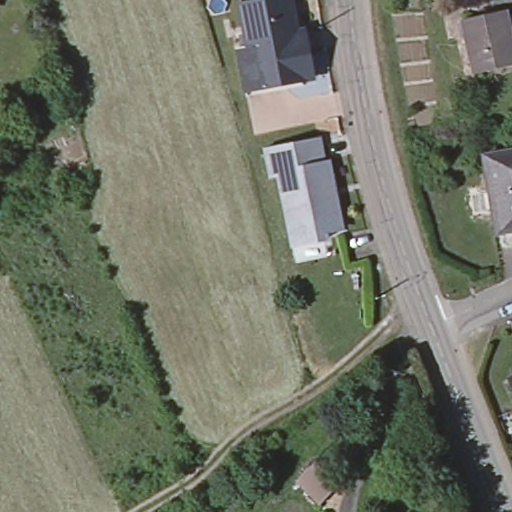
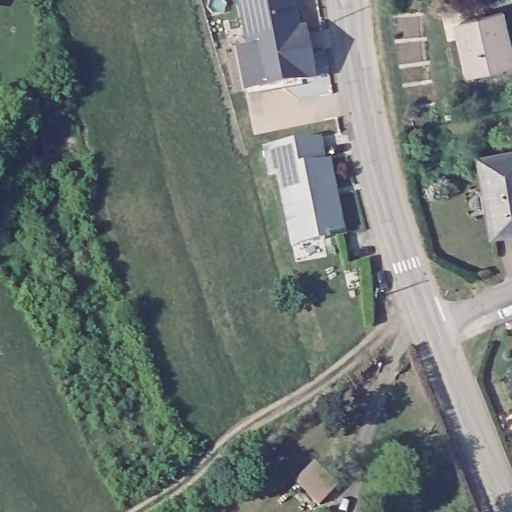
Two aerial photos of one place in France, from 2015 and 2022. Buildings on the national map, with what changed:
unchanged [(243,40),(253,38),(247,0),(297,0),(302,25),(309,25),(312,46),(317,71),(251,82),(243,40)]
unchanged [(476,71),(463,19),(504,9),(512,44),(512,62),(476,71)]
unchanged [(279,168),(273,170),(267,142),(318,132),(323,157),(328,156),(341,221),(324,226),(326,234),(329,250),(298,256),(296,240),(279,168)]
unchanged [(497,231),(486,156),(512,151),(512,228),(497,231)]
unchanged [(338,484),(319,503),(294,480),(313,461),(338,484)]

